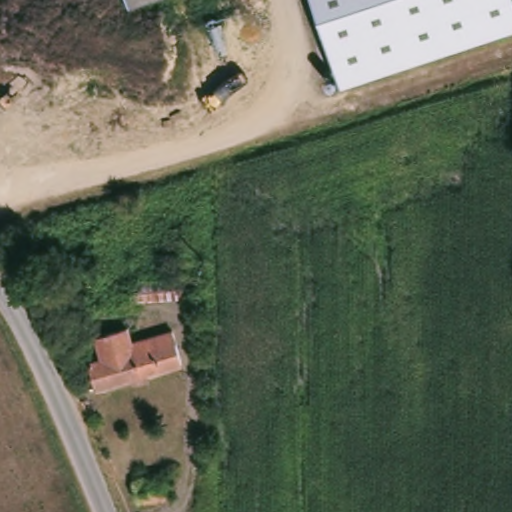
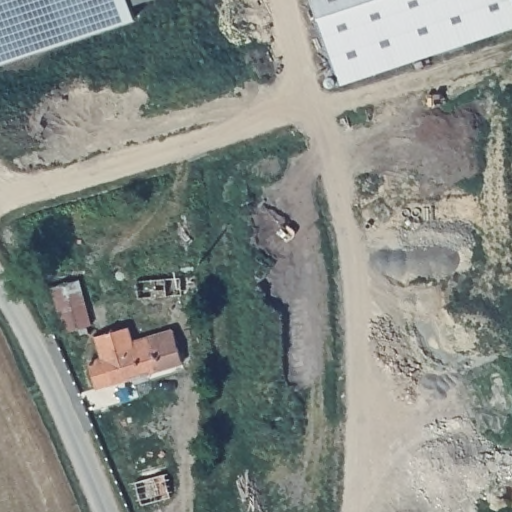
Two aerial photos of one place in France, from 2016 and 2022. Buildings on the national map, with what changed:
new [(0,63),(0,0),(113,0),(117,11),(130,6),(135,19),(0,63)]
unchanged [(117,11),(113,0),(148,0),(117,11)]
unchanged [(320,0),(512,0),(512,23),(351,82),(320,0)]
unchanged [(180,293),(136,301),(133,281),(178,274),(180,293)]
unchanged [(76,294),(90,323),(65,334),(60,321),(76,294)]
unchanged [(90,362),(103,356),(96,340),(127,329),(133,342),(175,328),(185,363),(99,388),(90,362)]
unchanged [(140,503),(129,479),(156,466),(167,491),(140,503)]

